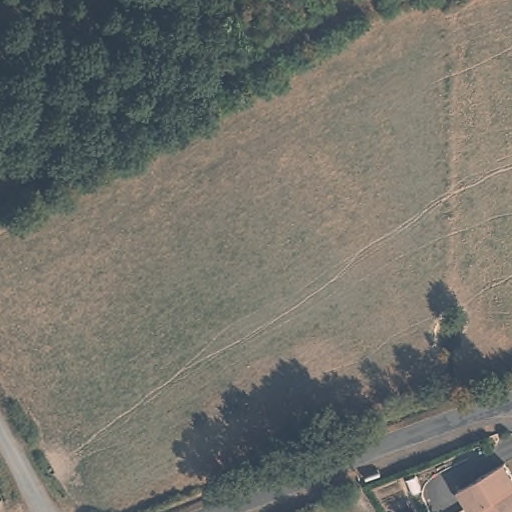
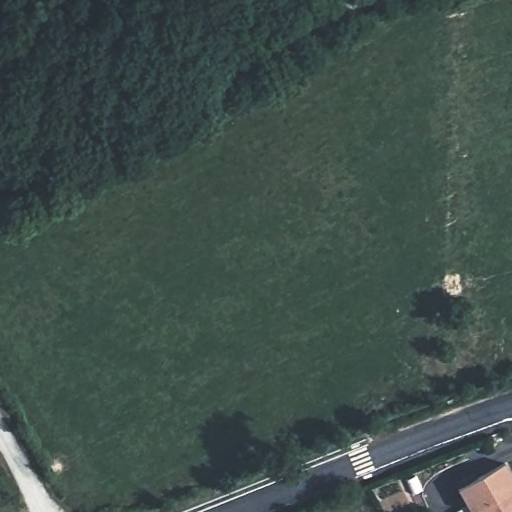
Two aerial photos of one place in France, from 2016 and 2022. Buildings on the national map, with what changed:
unchanged [(510,470),(512,473),(512,512),(468,512),(460,497),(510,470)]

